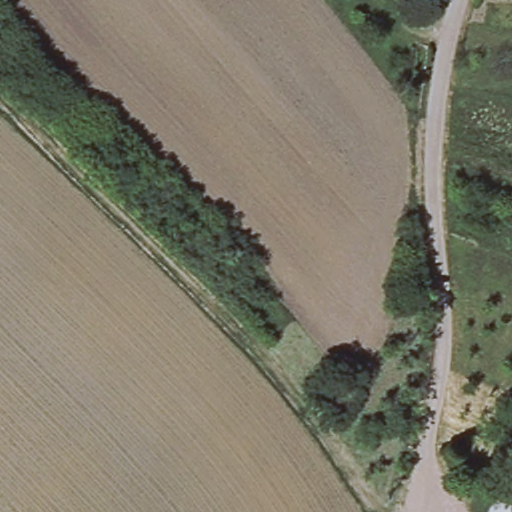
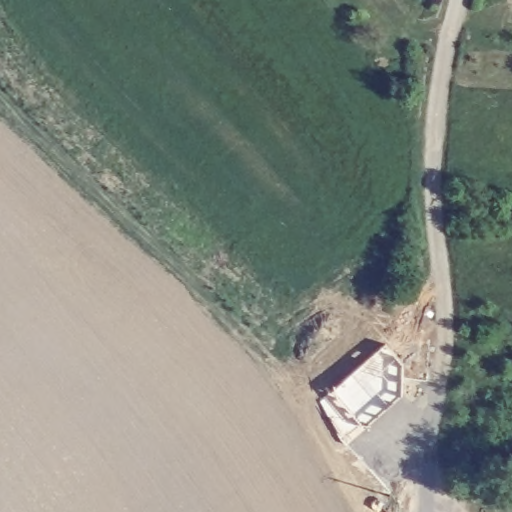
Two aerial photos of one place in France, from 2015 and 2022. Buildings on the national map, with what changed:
new [(401,365),(400,396),(370,425),(359,425),(344,440),(320,402),(387,348),(401,365)]

